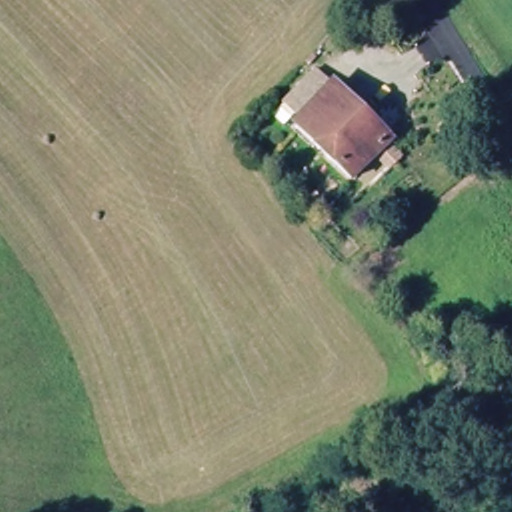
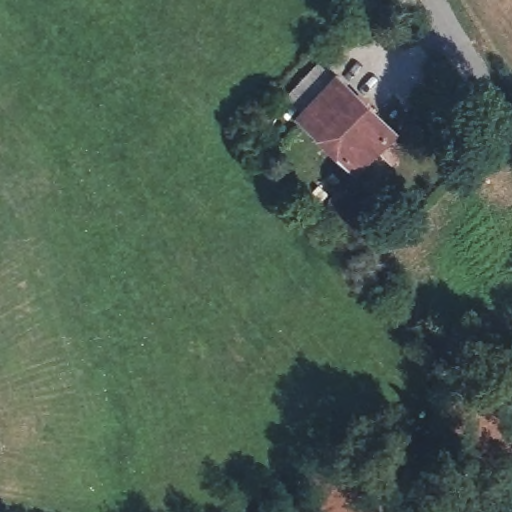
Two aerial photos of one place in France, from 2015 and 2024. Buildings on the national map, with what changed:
unchanged [(372,152),(350,176),(298,124),(337,83),(389,135),(372,152)]

